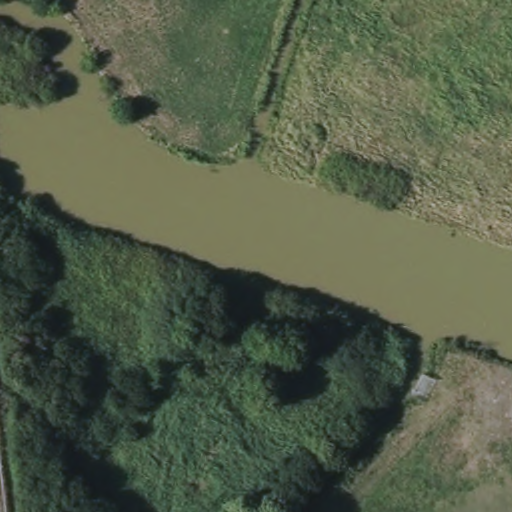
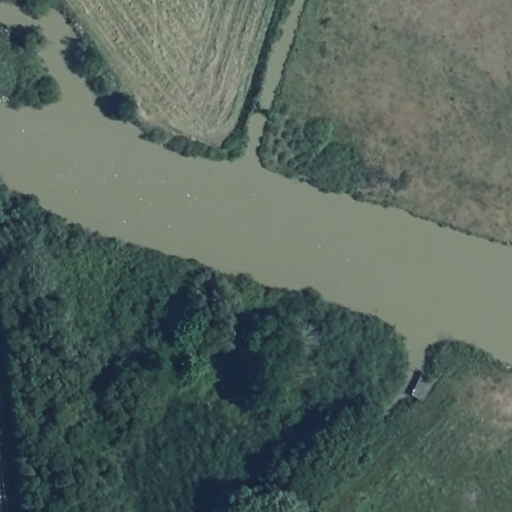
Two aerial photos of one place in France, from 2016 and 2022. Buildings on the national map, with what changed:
[]

